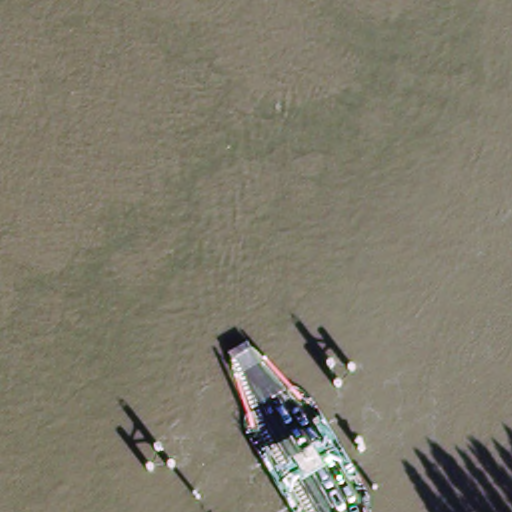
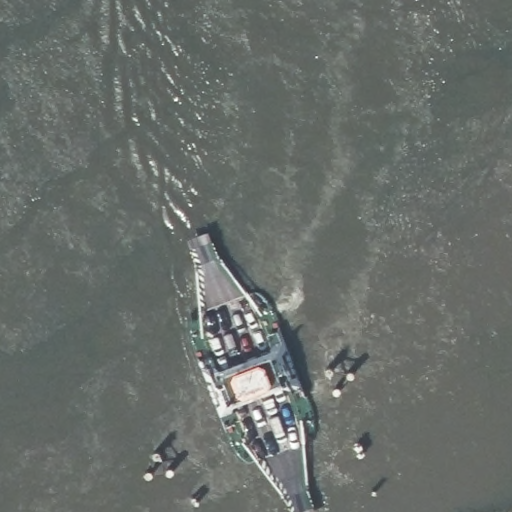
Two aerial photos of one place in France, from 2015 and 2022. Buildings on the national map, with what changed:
[]

